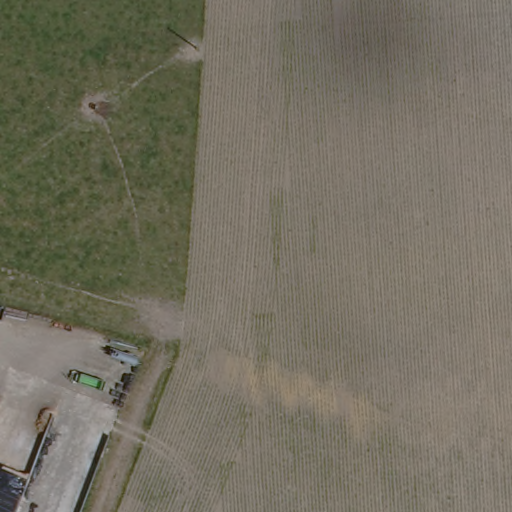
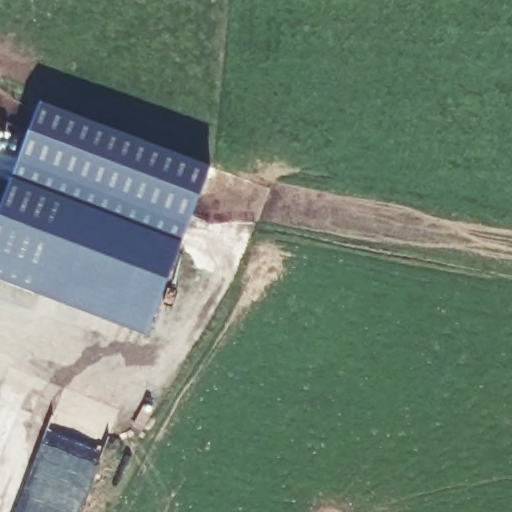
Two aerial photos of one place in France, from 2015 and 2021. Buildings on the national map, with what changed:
new [(213,165),(149,335),(0,278),(0,213),(43,101),(213,165)]

